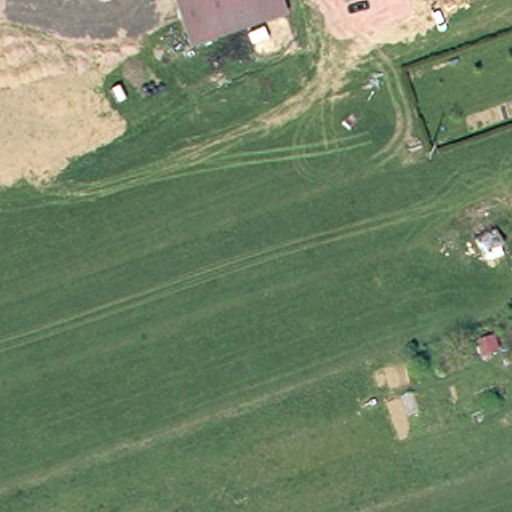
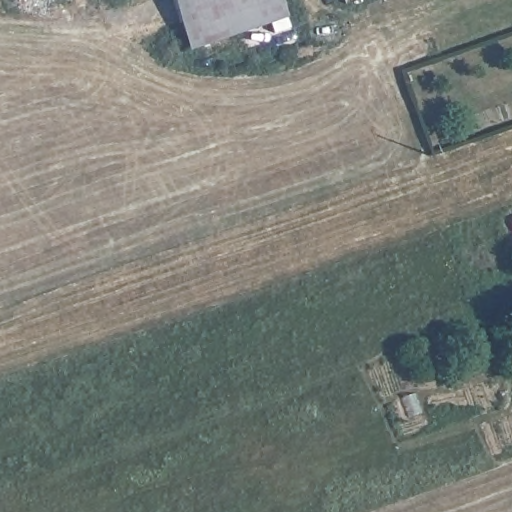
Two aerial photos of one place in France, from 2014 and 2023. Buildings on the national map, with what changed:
unchanged [(278,0),(281,6),(186,39),(174,2),(173,0),(278,0)]

